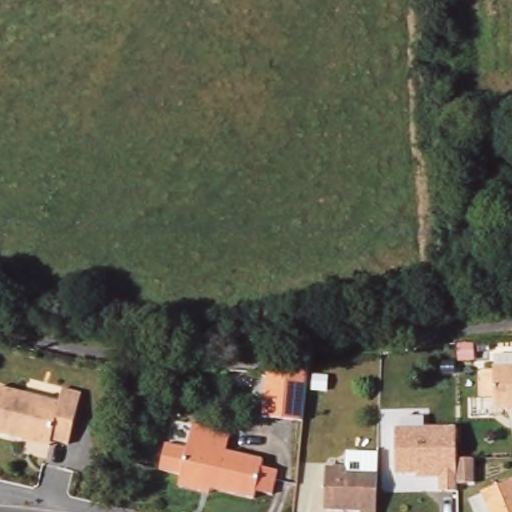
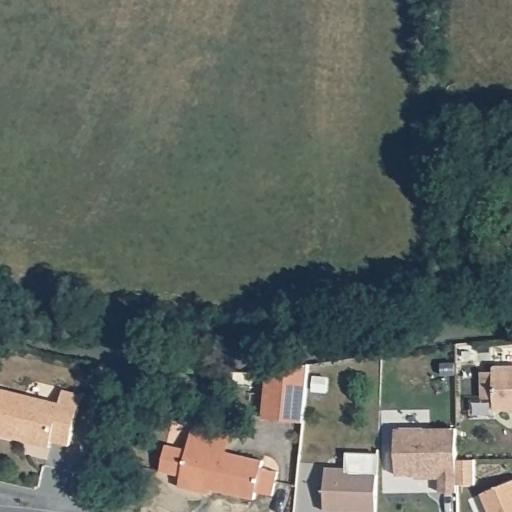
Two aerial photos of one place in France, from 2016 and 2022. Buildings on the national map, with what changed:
unchanged [(475,345),(476,359),(462,359),(462,346),(475,345)]
unchanged [(265,373),(307,363),(301,422),(261,418),(265,373)]
unchanged [(497,409),(497,397),(485,398),(484,371),(496,371),(496,366),(512,366),(512,409),(497,409)]
unchanged [(0,434),(0,397),(2,389),(62,404),(66,391),(85,396),(72,446),(55,442),(54,444),(53,448),(25,441),(0,434)]
unchanged [(458,459),(476,459),(476,485),(457,485),(457,493),(440,493),(440,479),(415,479),(415,474),(395,476),(394,427),(400,427),(400,417),(425,417),(425,427),(457,426),(458,459)]
unchanged [(199,492),(194,491),(176,487),(179,476),(159,471),(164,444),(185,449),(188,436),(190,425),(207,429),(229,434),(224,452),(260,461),(259,468),(275,472),(270,495),(254,492),(252,499),(208,489),(207,494),(199,492)]
unchanged [(365,512),(328,511),(330,467),(350,468),(350,452),(381,453),(380,474),(379,512),(364,512),(365,512)]
unchanged [(512,481),(512,512),(493,512),(485,493),(512,481)]

